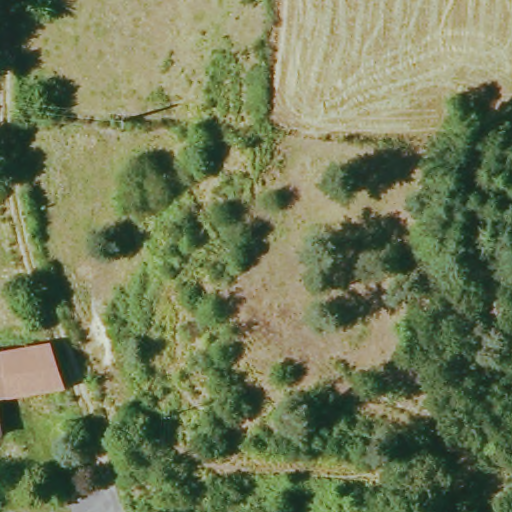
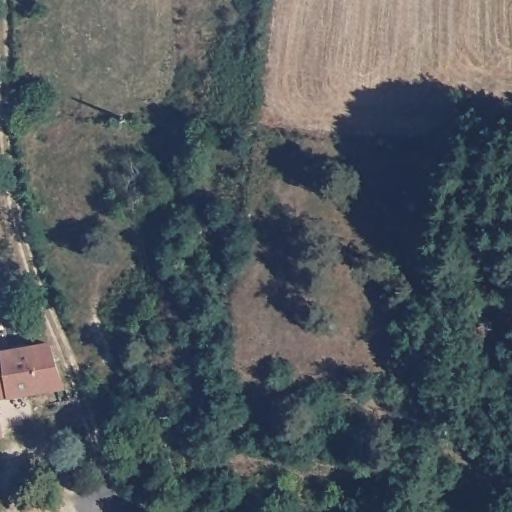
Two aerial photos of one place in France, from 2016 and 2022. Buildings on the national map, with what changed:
unchanged [(5,436),(0,436),(0,354),(55,346),(65,388),(1,398),(5,436)]

